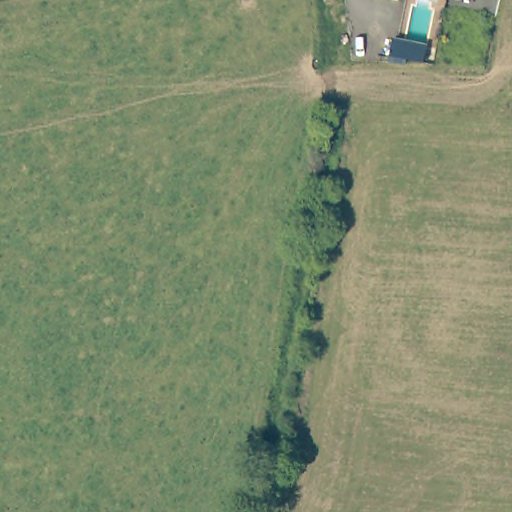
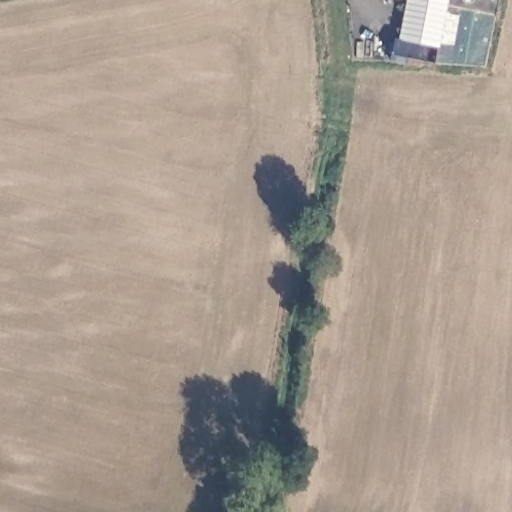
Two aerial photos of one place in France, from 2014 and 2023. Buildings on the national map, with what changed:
new [(397,41),(405,0),(447,0),(438,47),(425,45),(397,41)]
unchanged [(387,58),(390,40),(425,44),(422,63),(387,58)]

